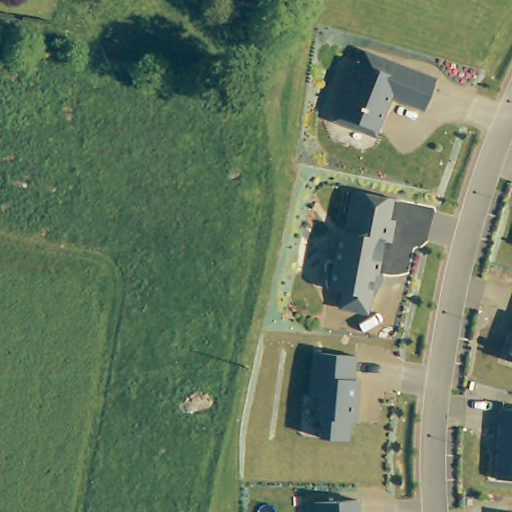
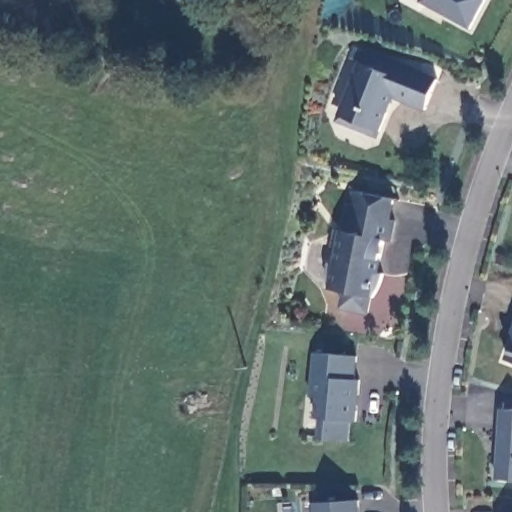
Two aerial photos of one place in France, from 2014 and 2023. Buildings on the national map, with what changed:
new [(418,0),(478,0),(466,25),(418,0)]
unchanged [(389,59),(386,70),(394,73),(399,62),(434,75),(422,105),(385,91),(379,107),(382,109),(375,127),(357,120),(350,123),(338,119),(335,112),(356,58),(358,59),(362,48),(389,59)]
unchanged [(339,305),(342,289),(333,287),(327,286),(324,278),(324,272),(324,265),(325,260),(332,261),(335,244),(340,245),(344,229),(351,187),(390,195),(386,216),(392,217),(388,237),(381,236),(377,255),(370,255),(369,267),(382,270),(379,276),(378,283),(374,288),(371,293),(369,293),(366,309),(339,305)]
unchanged [(506,355),(512,335),(512,357),(506,355)]
unchanged [(320,435),(322,415),(315,415),(317,394),(309,393),(313,349),(356,352),(354,376),(359,376),(357,418),(350,417),(349,437),(320,435)]
unchanged [(512,406),(512,475),(496,475),(499,405),(512,406)]
unchanged [(314,500),(358,497),(358,512),(315,512),(314,500)]

